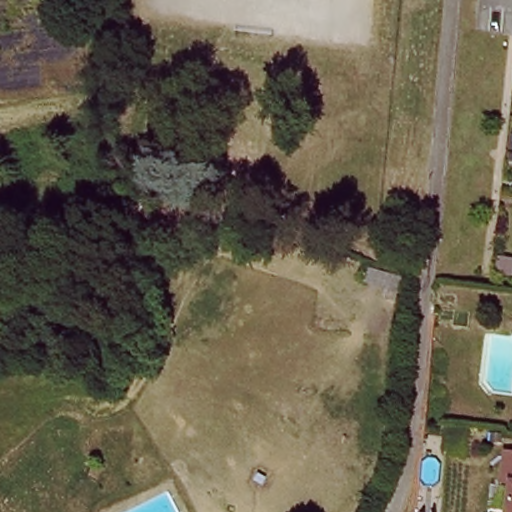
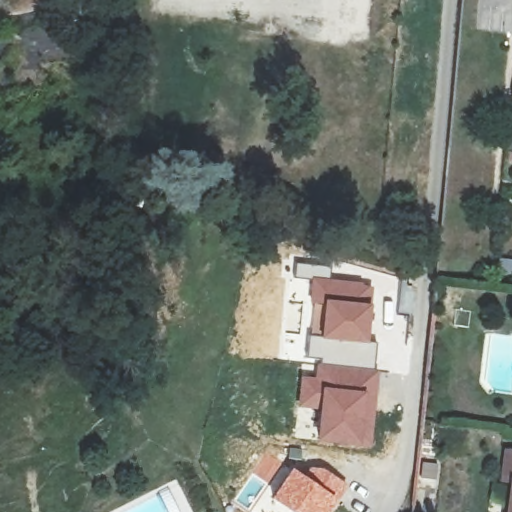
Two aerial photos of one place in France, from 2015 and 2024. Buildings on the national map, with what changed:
new [(295,261),(330,265),(329,279),(373,285),(368,344),(315,340),(315,337),(308,336),(310,278),(294,278),(295,261)]
new [(308,336),(315,337),(315,340),(368,344),(376,345),(374,368),(315,362),(315,358),(306,357),(308,336)]
new [(300,376),(314,377),(315,362),(374,368),(380,369),(373,448),(316,444),(318,410),(297,407),(300,376)]
unchanged [(512,481),(504,480),(508,450),(512,451),(512,481)]
new [(302,475),(310,465),(348,488),(331,512),(289,512),(271,500),(292,468),(302,475)]
unchanged [(512,512),(510,512),(512,496),(512,512)]

